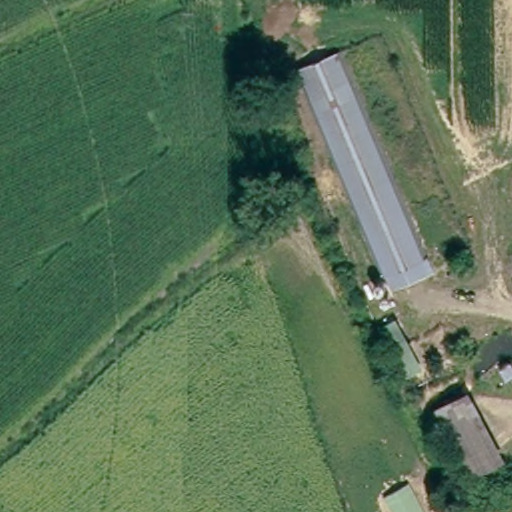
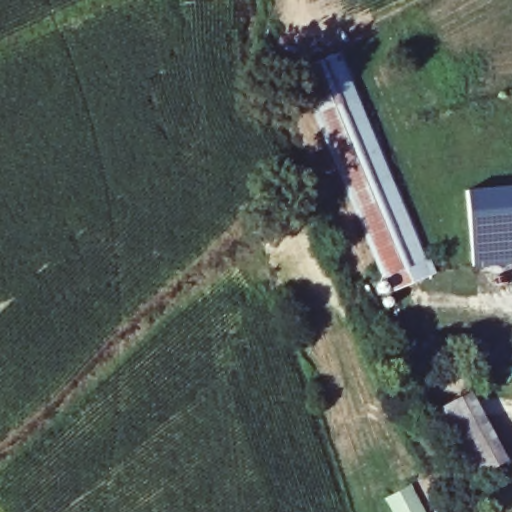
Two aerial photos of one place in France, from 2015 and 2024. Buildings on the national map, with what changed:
unchanged [(390,274),(387,271),(291,71),(331,52),(438,267),(423,274),(395,287),(390,274)]
new [(472,267),(467,189),(512,185),(512,264),(472,267)]
unchanged [(477,479),(445,413),(470,401),(501,467),(477,479)]
new [(422,512),(391,512),(384,499),(409,485),(422,512)]

